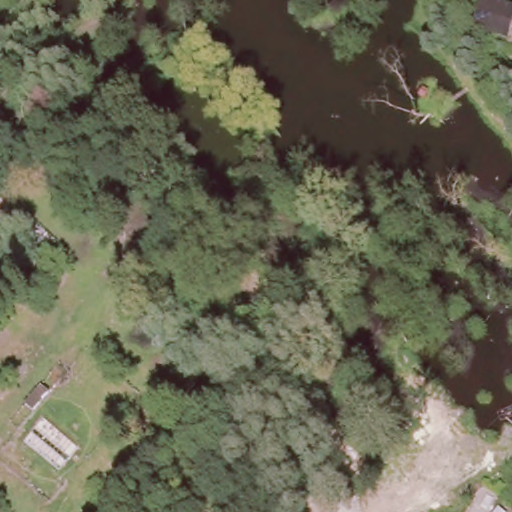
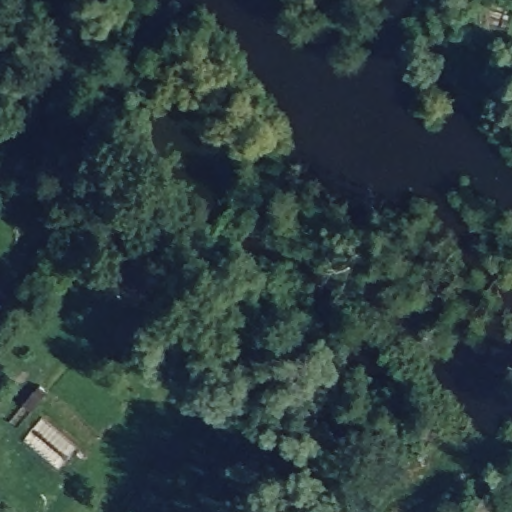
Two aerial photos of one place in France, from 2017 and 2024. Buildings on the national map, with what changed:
unchanged [(508,37),(499,35),(475,27),(484,0),(492,0),(509,5),(512,7),(512,24),(508,37)]
unchanged [(34,409),(25,402),(42,384),(50,391),(34,409)]

